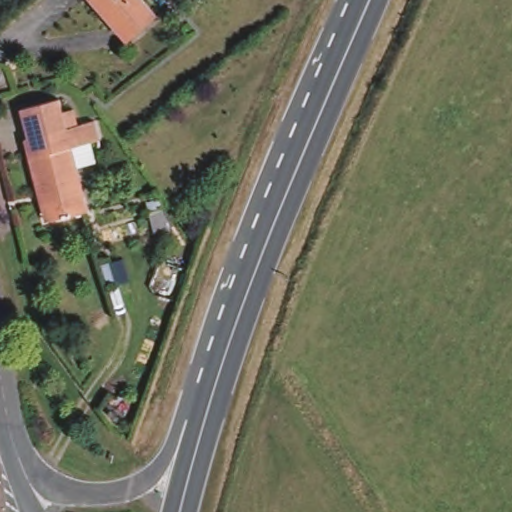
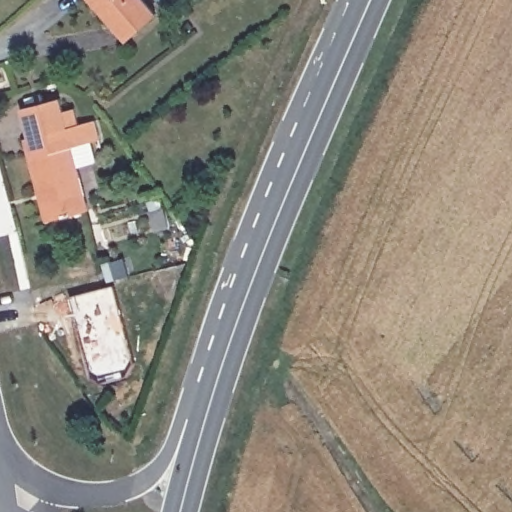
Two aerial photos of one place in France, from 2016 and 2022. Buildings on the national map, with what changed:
unchanged [(131,43),(93,0),(145,0),(161,18),(131,43)]
unchanged [(43,192),(28,139),(32,137),(25,109),(63,99),(70,127),(98,119),(104,139),(77,147),(93,209),(56,219),(51,221),(43,192)]
unchanged [(154,231),(149,213),(162,209),(167,228),(154,231)]

